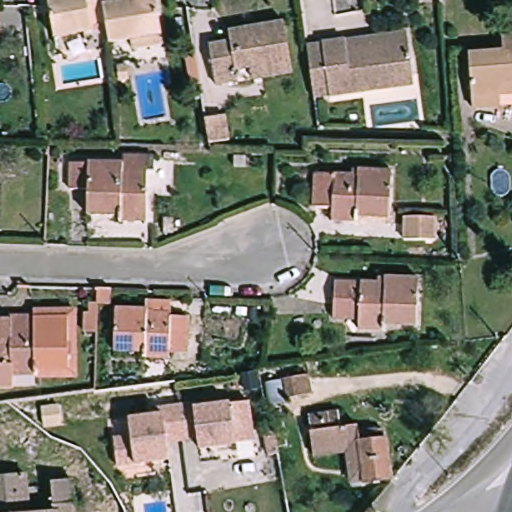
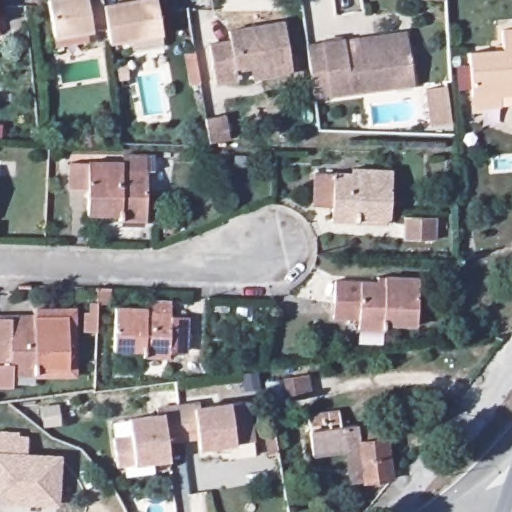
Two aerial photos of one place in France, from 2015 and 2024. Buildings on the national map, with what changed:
unchanged [(107,21),(89,26),(91,40),(56,47),(51,9),(82,2),(81,0),(104,0),(106,15),(107,21)]
unchanged [(107,21),(106,15),(157,4),(164,39),(113,52),(107,21)]
unchanged [(220,51),(234,49),(234,34),(290,26),(296,68),(242,77),(243,84),(225,86),(220,51)]
unchanged [(478,96),(476,51),(508,49),(507,26),(512,26),(512,85),(503,85),(504,94),(505,108),(479,108),(478,96)]
unchanged [(394,89),(339,97),(321,100),(312,45),(352,40),(410,31),(414,59),(416,78),(417,85),(394,89)]
unchanged [(206,89),(188,90),(184,62),(201,60),(206,89)]
unchanged [(212,121),(235,116),(240,144),(216,148),(212,121)]
unchanged [(92,188),(75,186),(76,160),(128,160),(128,170),(152,170),(150,205),(131,204),(130,214),(91,214),(92,188)]
unchanged [(354,213),(330,212),(329,203),(315,200),(316,169),(357,172),(358,164),(394,165),(392,222),(354,222),(354,213)]
unchanged [(440,242),(408,241),(407,217),(441,216),(440,242)]
unchanged [(380,314),(337,310),(340,282),(383,282),(384,274),(418,276),(415,325),(380,322),(380,314)]
new [(91,313),(91,304),(98,304),(98,288),(111,289),(111,305),(98,304),(97,314),(97,333),(84,332),(85,313),(91,313)]
unchanged [(18,378),(16,392),(0,392),(0,315),(78,309),(77,376),(18,378)]
unchanged [(124,315),(152,317),(153,321),(193,322),(191,353),(167,354),(167,357),(122,356),(124,315)]
unchanged [(318,397),(275,406),(269,382),(312,372),(318,397)]
unchanged [(205,406),(206,411),(254,403),(261,443),(207,452),(205,441),(190,444),(184,409),(205,406)]
unchanged [(307,409),(339,406),(344,424),(361,421),(364,439),(393,434),(403,481),(351,492),(348,457),(313,462),(307,409)]
unchanged [(174,446),(177,463),(125,472),(121,444),(138,441),(135,424),(164,420),(163,413),(184,409),(190,444),(174,446)]
new [(20,434),(20,438),(28,438),(27,454),(63,457),(59,508),(0,504),(0,433),(20,434)]
demolished [(24,473),(25,476),(28,495),(30,509),(54,507),(53,493),(51,479),(73,477),(75,491),(77,512),(0,512),(0,476),(24,473)]

